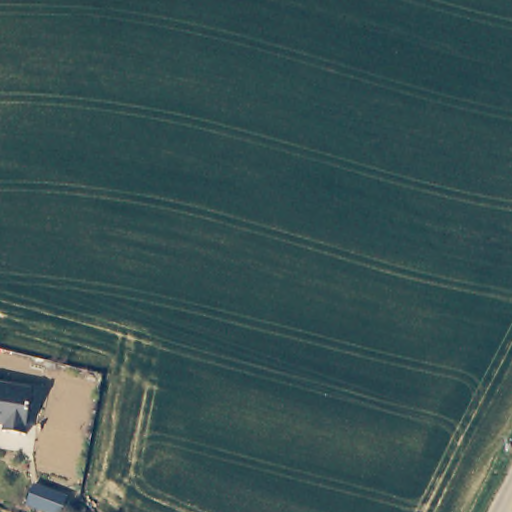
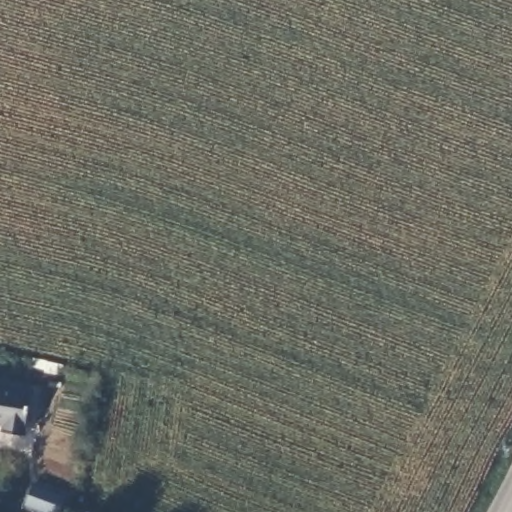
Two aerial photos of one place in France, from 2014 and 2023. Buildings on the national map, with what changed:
unchanged [(31,387),(24,432),(4,429),(5,423),(0,422),(0,384),(31,387)]

